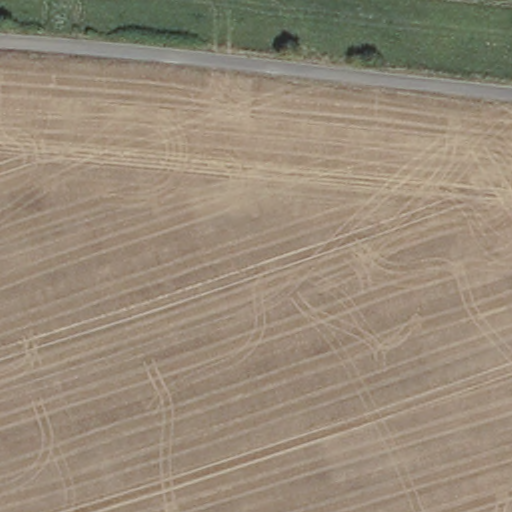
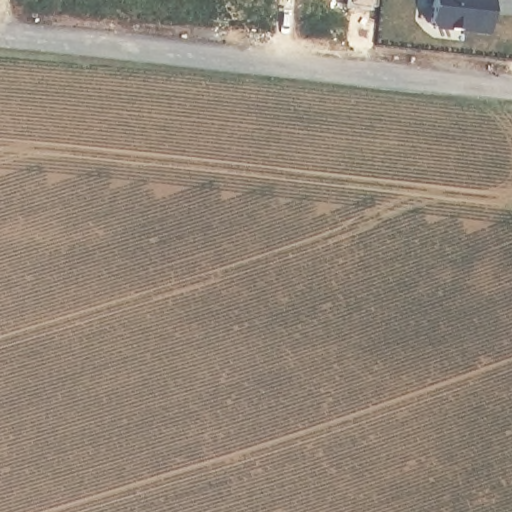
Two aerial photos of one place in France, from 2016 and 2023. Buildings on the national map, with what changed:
new [(433,0),(493,0),(490,30),(432,25),(433,0)]

